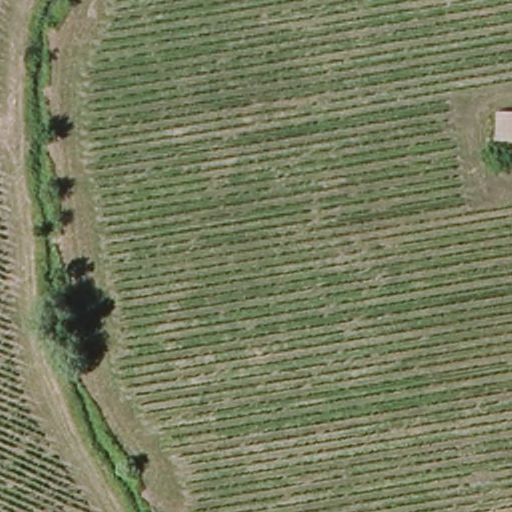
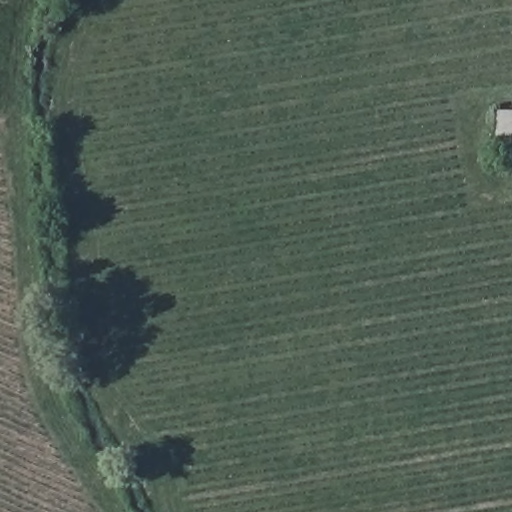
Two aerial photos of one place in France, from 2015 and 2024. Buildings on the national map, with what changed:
unchanged [(503,149),(502,126),(512,126),(512,148),(503,149)]

